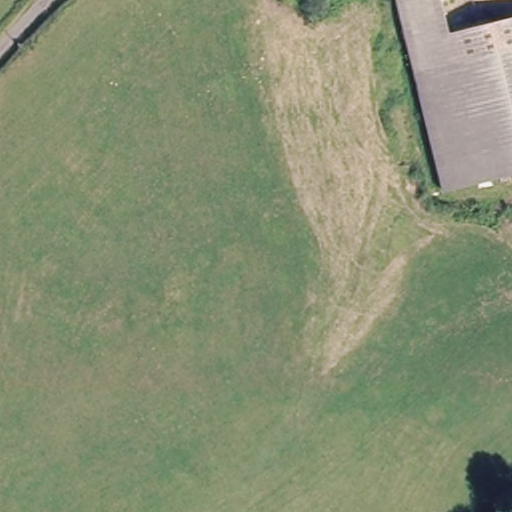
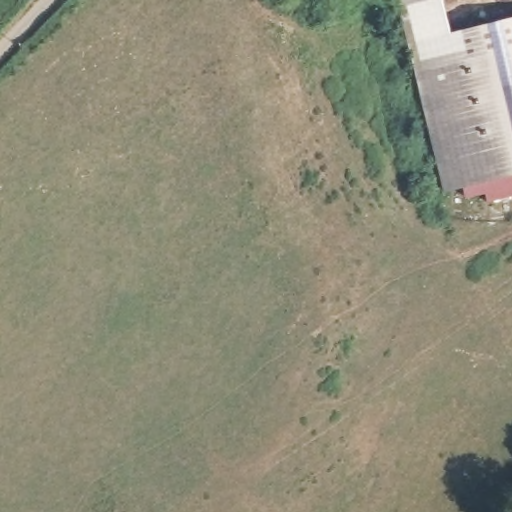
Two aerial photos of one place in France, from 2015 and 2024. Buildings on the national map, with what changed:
unchanged [(393,0),(436,0),(445,37),(437,40),(405,47),(393,0)]
unchanged [(445,37),(512,21),(512,177),(442,195),(409,64),(405,47),(437,40),(445,37)]

